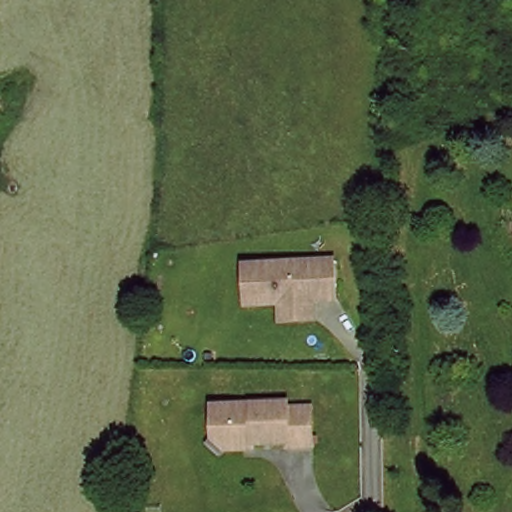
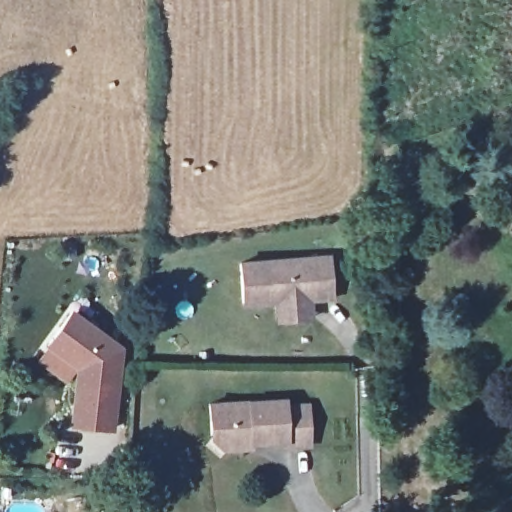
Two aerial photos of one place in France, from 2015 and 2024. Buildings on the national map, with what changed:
unchanged [(277,316),(276,298),(246,299),(245,262),(330,260),(332,298),(309,298),(309,306),(309,316),(277,316)]
new [(45,344),(71,309),(124,347),(115,432),(68,427),(73,388),(34,362),(45,344)]
unchanged [(287,414),(310,414),(309,454),(284,452),(284,448),(227,447),(211,430),(217,406),(287,408),(287,414)]

